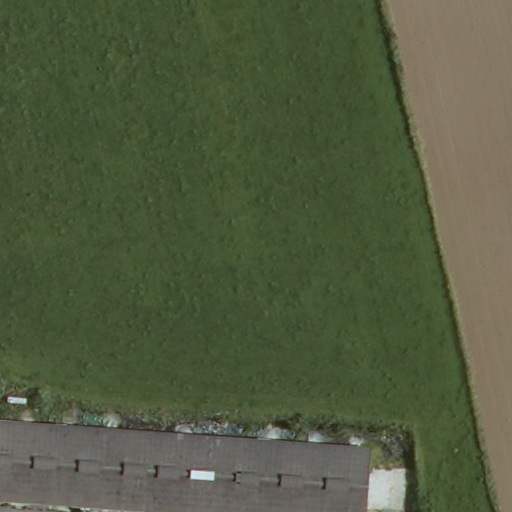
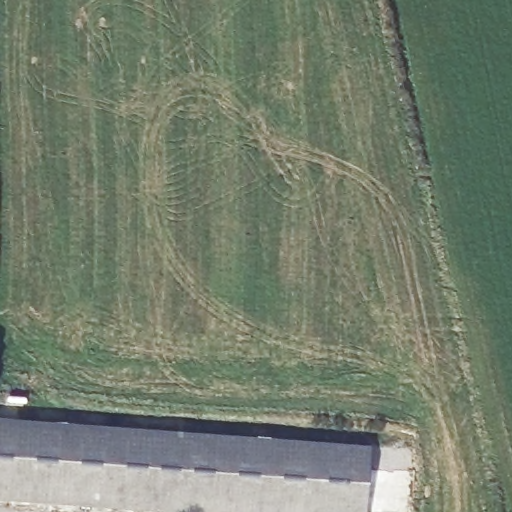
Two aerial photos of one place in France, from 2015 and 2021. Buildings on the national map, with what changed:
unchanged [(0,424),(368,453),(363,512),(166,512),(0,498),(0,424)]

